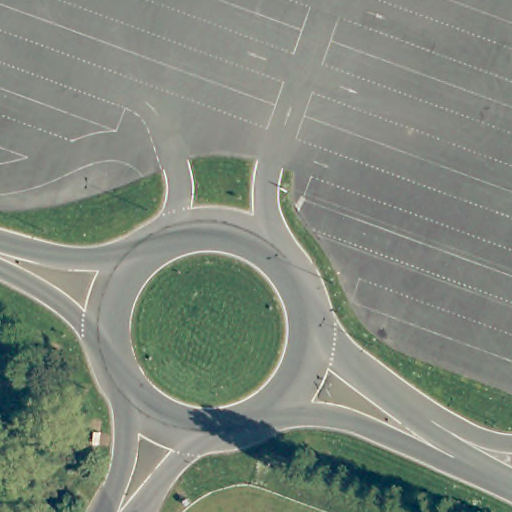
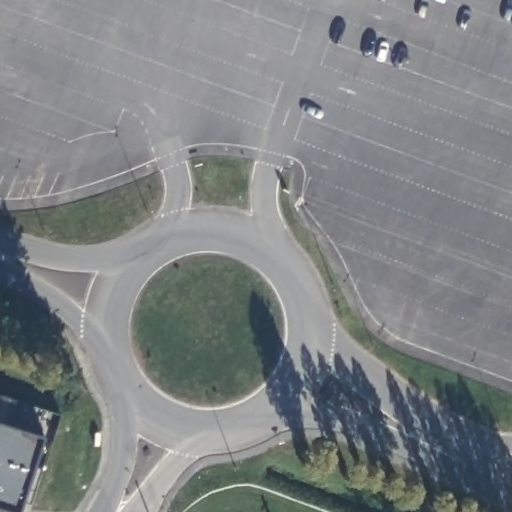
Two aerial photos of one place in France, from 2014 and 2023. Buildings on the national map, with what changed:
new [(16,399),(11,426),(42,435),(18,512),(14,512),(0,508),(0,394),(16,399)]

